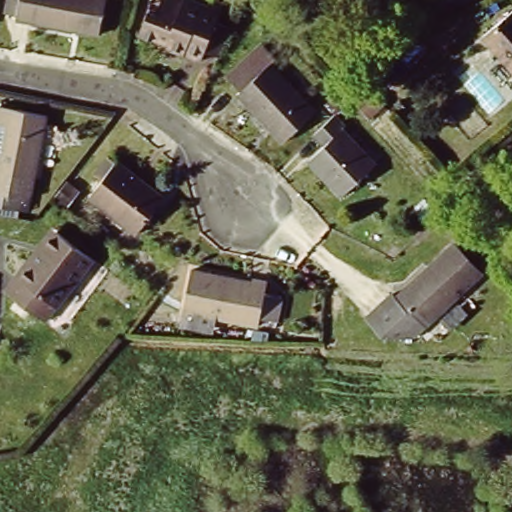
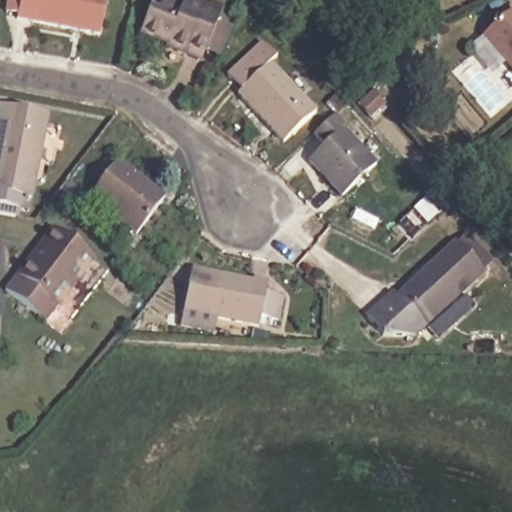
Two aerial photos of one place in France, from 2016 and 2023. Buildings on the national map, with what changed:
unchanged [(105,40),(22,24),(22,20),(12,18),(15,0),(112,0),(105,40)]
unchanged [(134,9),(135,6),(143,9),(146,0),(188,0),(194,2),(195,0),(209,0),(207,5),(202,17),(218,23),(204,52),(190,46),(187,56),(151,42),(152,40),(143,37),(125,30),(134,9)]
unchanged [(227,22),(235,11),(246,19),(237,30),(227,22)]
unchanged [(512,12),(512,69),(483,36),(512,12)]
unchanged [(267,57),(262,62),(307,111),(275,141),(230,92),(232,89),(219,74),(253,42),(267,57)]
unchanged [(0,214),(0,106),(47,115),(31,199),(22,197),(20,210),(18,218),(0,214)]
unchanged [(338,124),(335,127),(368,163),(334,195),(300,160),(317,144),(306,133),(327,113),(338,124)]
unchanged [(117,161),(137,176),(142,180),(165,198),(137,234),(89,198),(102,180),(95,174),(108,157),(116,163),(117,161)]
unchanged [(78,190),(65,206),(55,197),(67,182),(78,190)]
unchanged [(414,209),(425,199),(438,213),(427,223),(414,209)]
unchanged [(40,322),(0,290),(23,261),(49,228),(53,231),(90,260),(40,322)]
unchanged [(397,302),(426,275),(456,247),(483,277),(413,342),(383,341),(367,323),(393,298),(397,302)]
unchanged [(181,323),(183,311),(192,270),(252,282),(252,281),(267,284),(265,293),(282,297),(277,321),(260,318),(258,326),(217,318),(215,330),(181,323)]
unchanged [(477,340),(492,340),(492,348),(477,349),(477,340)]

